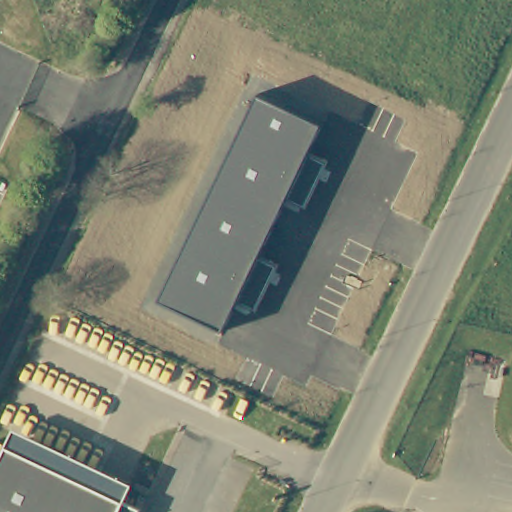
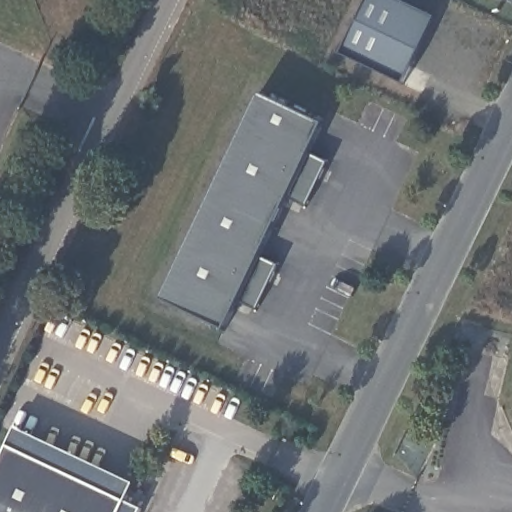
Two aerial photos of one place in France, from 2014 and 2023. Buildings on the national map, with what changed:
new [(343,53),(369,0),(397,0),(435,17),(404,83),(343,53)]
unchanged [(310,154),(327,164),(307,205),(291,195),(260,257),(277,266),(257,308),(241,298),(225,331),(162,301),(261,95),(323,125),(310,154)]
unchanged [(0,512),(0,463),(16,428),(134,483),(125,502),(141,510),(141,512),(0,512)]

